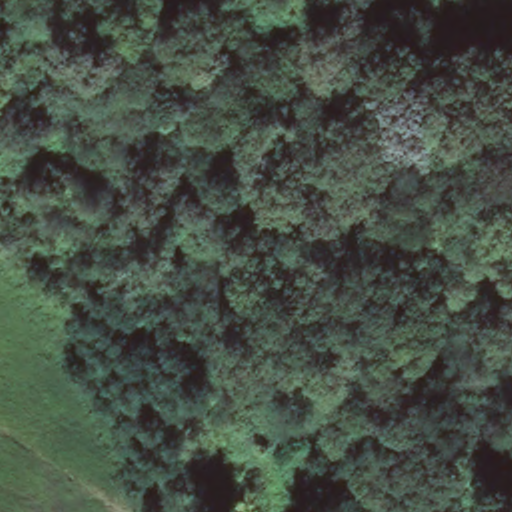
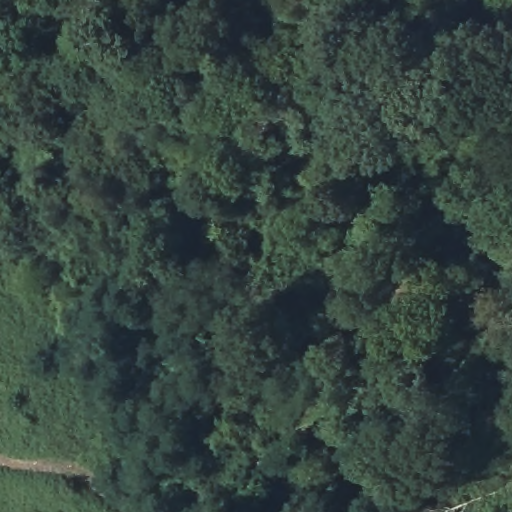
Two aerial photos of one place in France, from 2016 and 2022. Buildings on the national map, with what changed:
unchanged [(251,396),(288,386),(294,423),(259,435),(251,396)]

